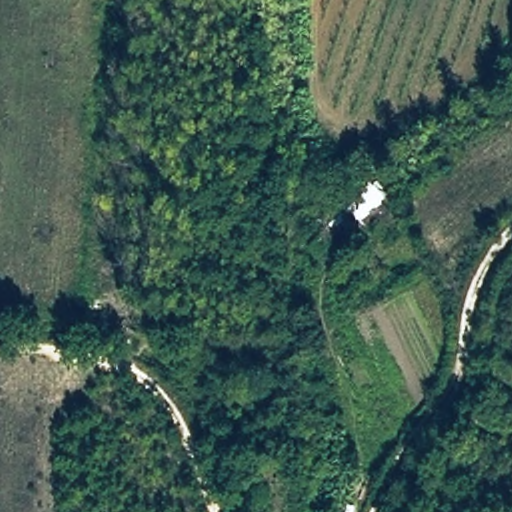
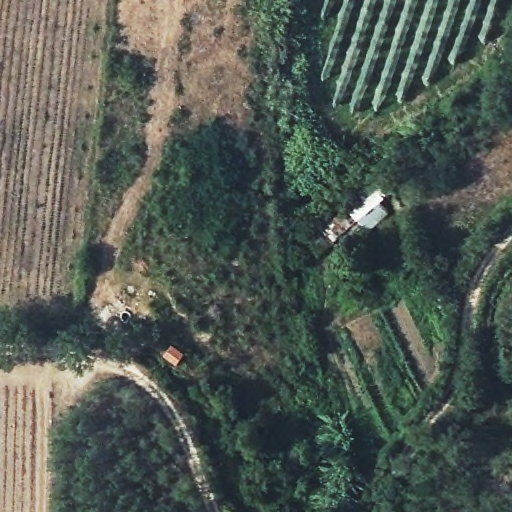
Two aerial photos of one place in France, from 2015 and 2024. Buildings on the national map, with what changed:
unchanged [(392,195),(381,204),(389,212),(370,232),(359,220),(339,235),(328,224),(376,180),(392,195)]

